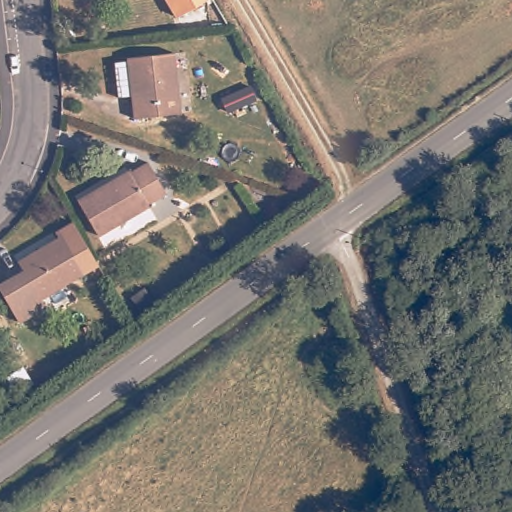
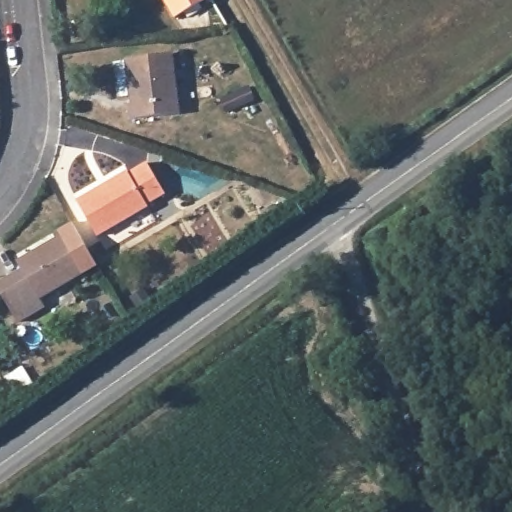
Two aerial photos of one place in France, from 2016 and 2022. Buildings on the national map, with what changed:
unchanged [(176,17),(166,0),(205,0),(176,17)]
unchanged [(128,70),(132,65),(144,64),(144,62),(187,58),(193,117),(147,122),(146,99),(131,101),(128,70)]
unchanged [(221,98),(247,86),(253,99),(226,111),(221,98)]
unchanged [(86,200),(137,171),(139,172),(156,162),(174,193),(155,204),(156,205),(106,235),(86,200)]
unchanged [(0,293),(22,280),(16,272),(58,248),(54,242),(71,232),(86,257),(96,274),(82,282),(39,308),(44,317),(17,332),(0,302),(0,293)]
unchanged [(5,377),(21,367),(31,384),(15,394),(5,377)]

